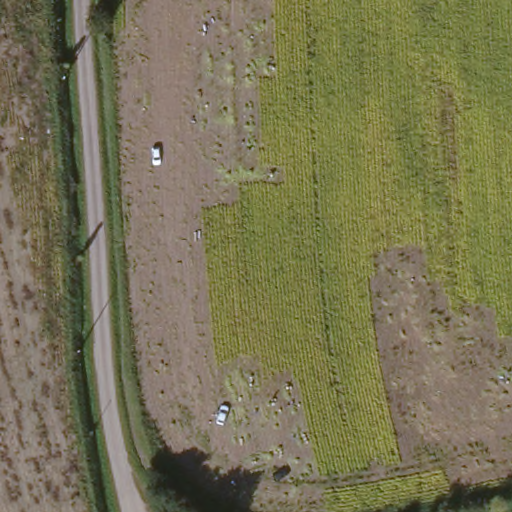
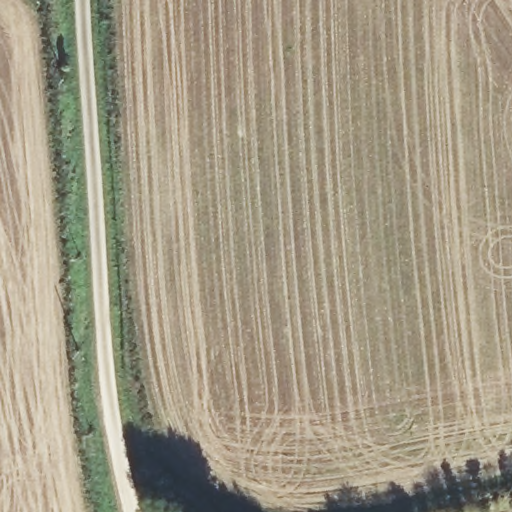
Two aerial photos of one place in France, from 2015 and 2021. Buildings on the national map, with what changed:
[]

